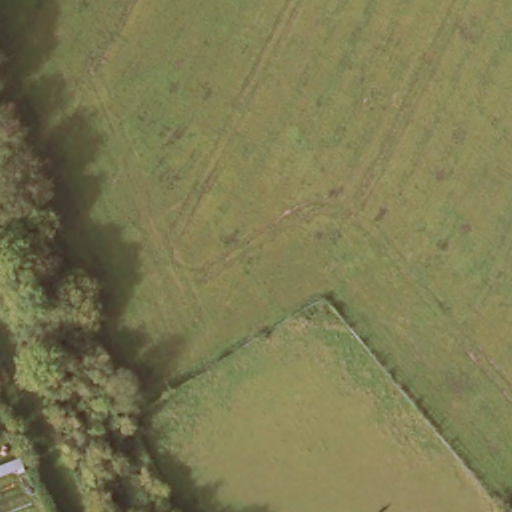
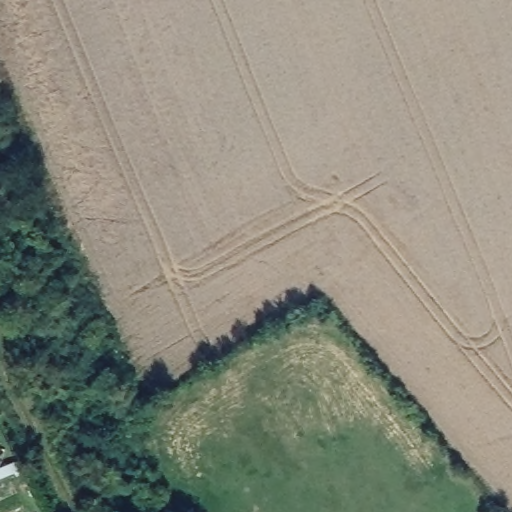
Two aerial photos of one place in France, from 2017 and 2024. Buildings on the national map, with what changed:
unchanged [(19,465),(0,473),(0,462),(14,456),(19,465)]

